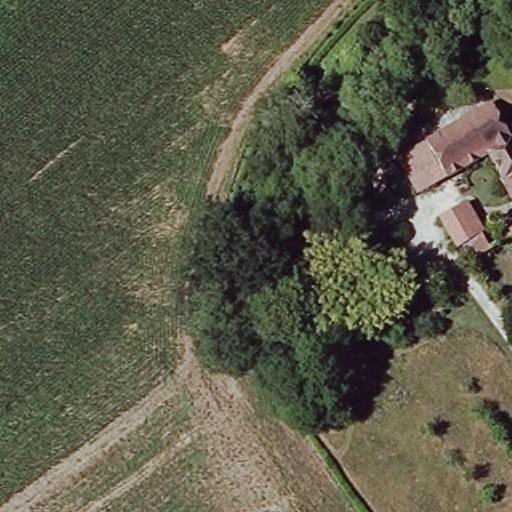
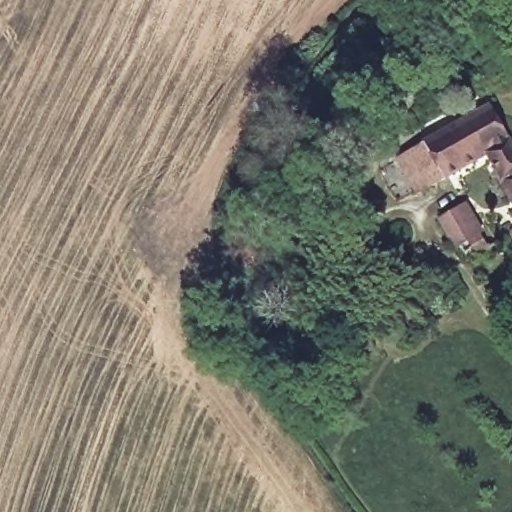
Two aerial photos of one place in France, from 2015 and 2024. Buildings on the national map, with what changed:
unchanged [(407,193),(387,159),(488,98),(508,129),(506,133),(512,144),(512,209),(477,150),(407,193)]
unchanged [(476,228),(470,232),(482,250),(468,259),(457,242),(447,247),(430,222),(460,203),(476,228)]
unchanged [(506,232),(512,228),(512,243),(506,232)]
unchanged [(303,442),(319,465),(301,463),(303,442)]

